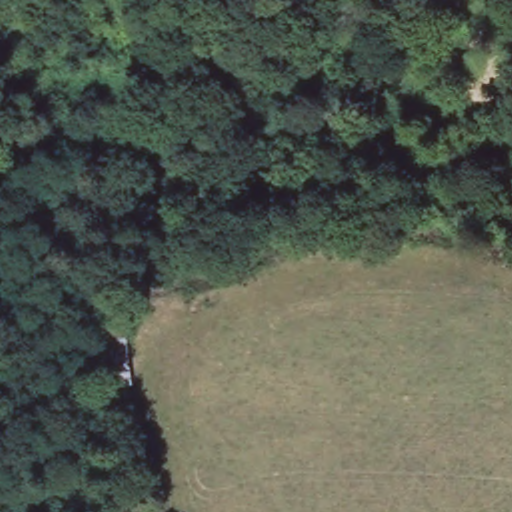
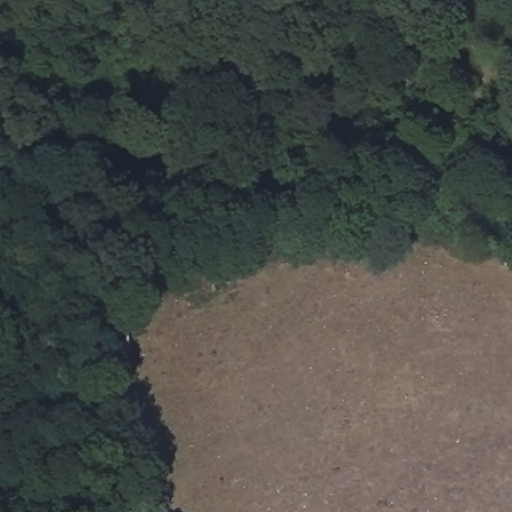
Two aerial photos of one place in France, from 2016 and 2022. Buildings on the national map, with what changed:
unchanged [(109,325),(133,325),(138,382),(113,383),(109,325)]

